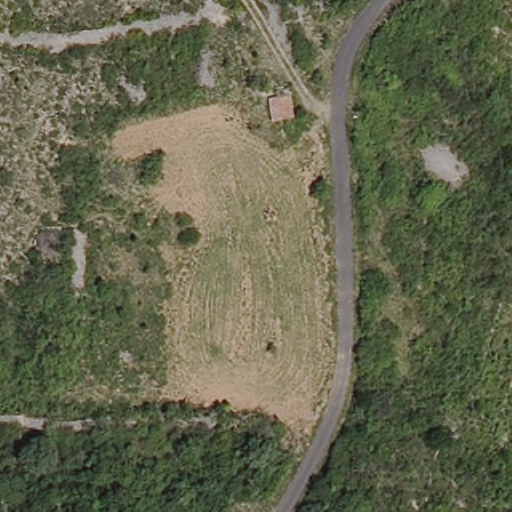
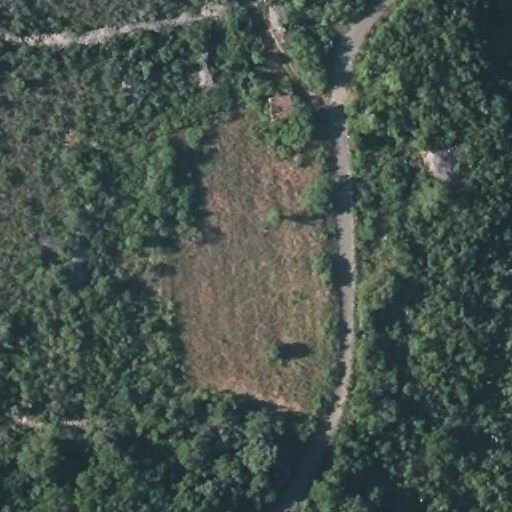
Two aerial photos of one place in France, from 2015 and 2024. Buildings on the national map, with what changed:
unchanged [(269,121),(266,95),(293,93),(295,118),(269,121)]

